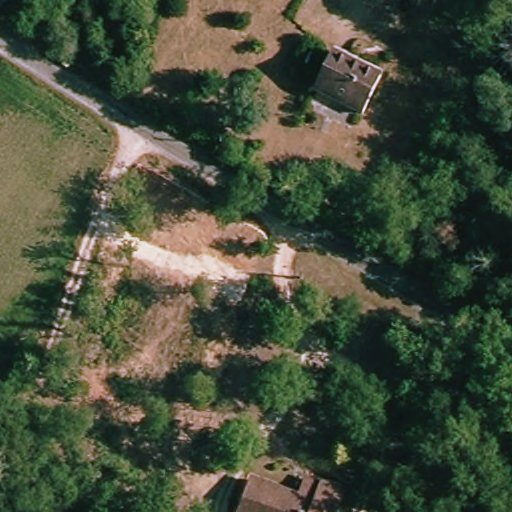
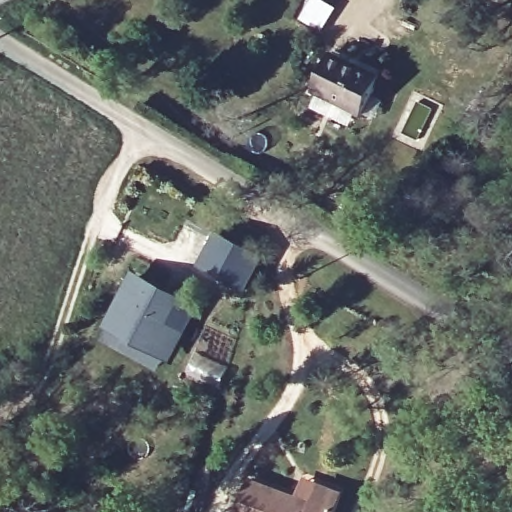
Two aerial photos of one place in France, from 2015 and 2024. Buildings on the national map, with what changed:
unchanged [(385,76),(365,111),(317,85),(337,50),(385,76)]
new [(265,256),(246,290),(197,263),(216,229),(265,256)]
new [(199,302),(163,373),(98,340),(134,270),(199,302)]
unchanged [(338,512),(246,512),(256,479),(318,499),(322,484),(345,492),(338,512)]

